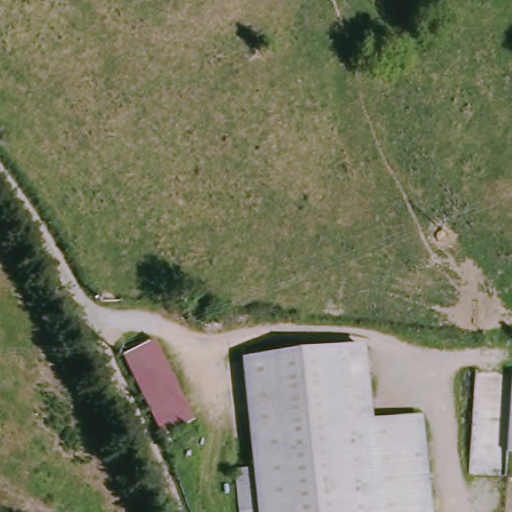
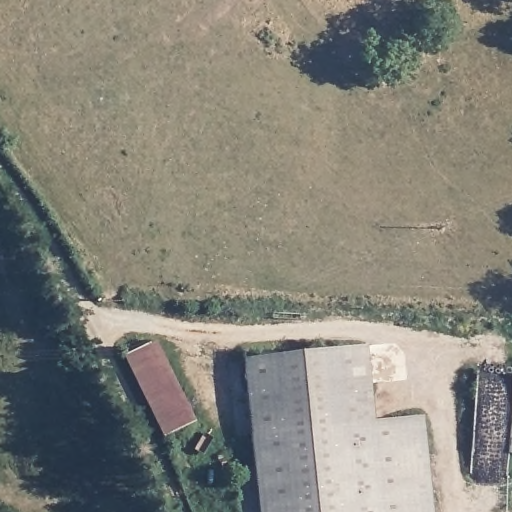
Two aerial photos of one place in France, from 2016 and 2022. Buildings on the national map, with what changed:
unchanged [(159,340),(197,423),(166,437),(128,356),(159,340)]
unchanged [(236,468),(255,466),(242,359),(364,346),(372,420),(422,414),(432,512),(241,512),(236,468)]

